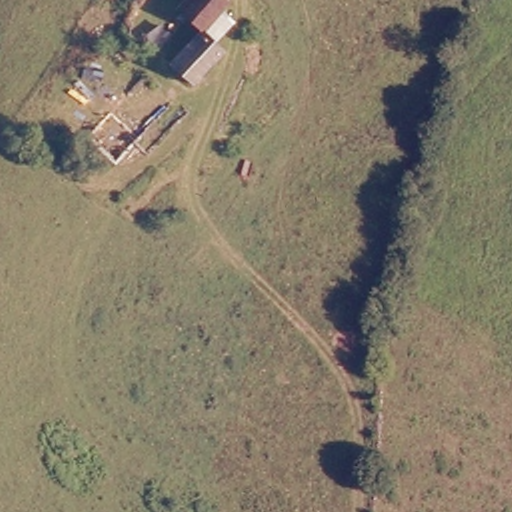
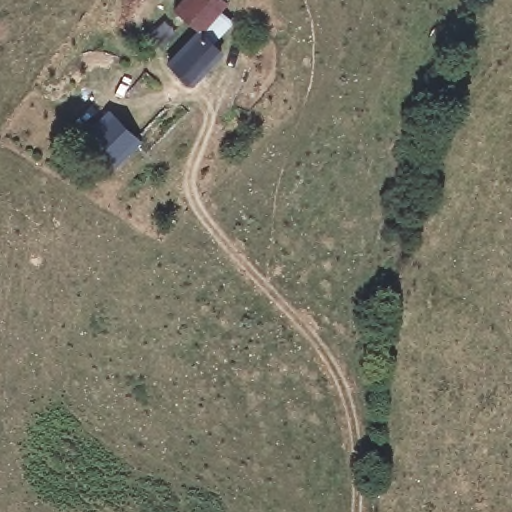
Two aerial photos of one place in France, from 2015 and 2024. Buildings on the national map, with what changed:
unchanged [(182,0),(228,0),(201,26),(179,4),(182,0)]
unchanged [(221,47),(189,78),(170,55),(201,26),(221,47)]
new [(144,140),(116,171),(82,140),(110,110),(144,140)]

